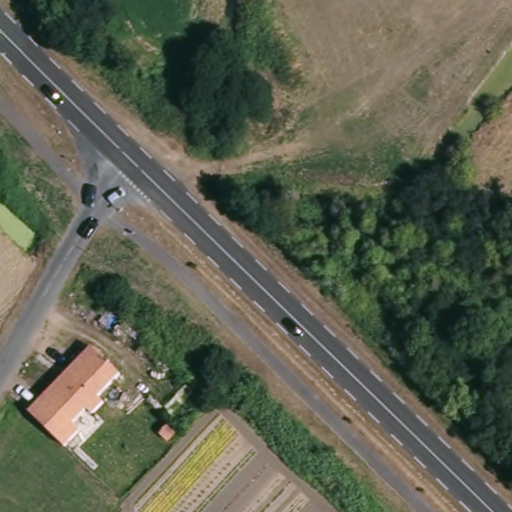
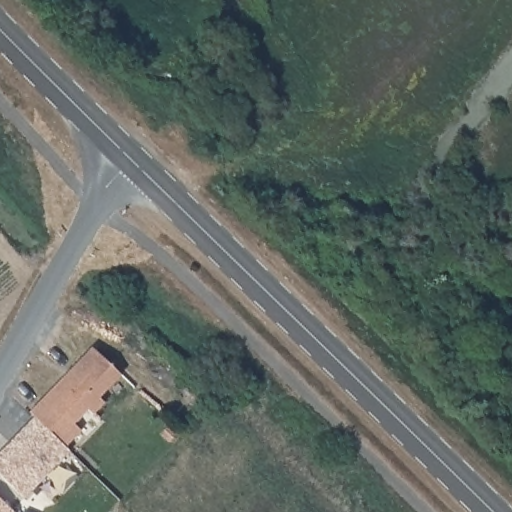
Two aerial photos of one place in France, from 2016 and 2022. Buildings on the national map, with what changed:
unchanged [(74,420),(81,427),(65,442),(30,407),(93,343),(121,371),(99,393),(105,399),(93,411),(88,405),(74,420)]
new [(71,451),(22,498),(0,477),(0,451),(36,414),(65,442),(71,451)]
new [(17,512),(0,512),(0,493),(18,511),(17,512)]

